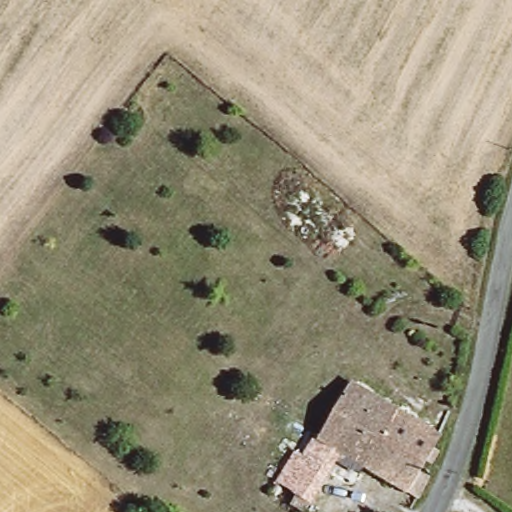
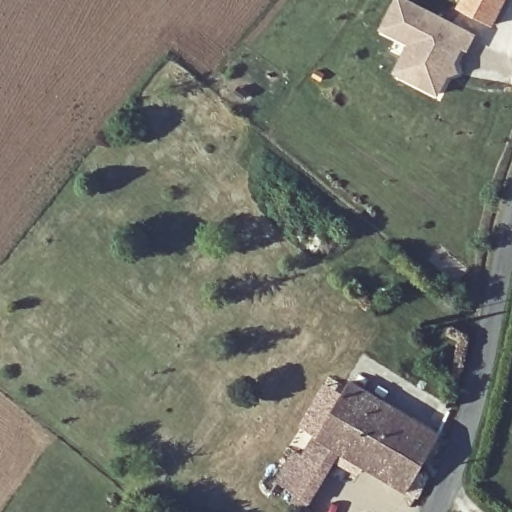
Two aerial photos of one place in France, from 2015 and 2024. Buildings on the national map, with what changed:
new [(421,81),(397,68),(413,39),(385,25),(398,0),(420,0),(477,31),(470,46),(465,44),(457,59),(450,71),(440,91),(421,81)]
new [(457,9),(462,0),(508,0),(494,27),(457,9)]
unchanged [(360,465),(357,471),(334,456),(302,508),(270,487),(293,448),(299,450),(311,431),(315,434),(350,375),(438,428),(430,444),(437,448),(430,459),(423,455),(417,467),(426,473),(413,495),(403,490),(360,465)]

